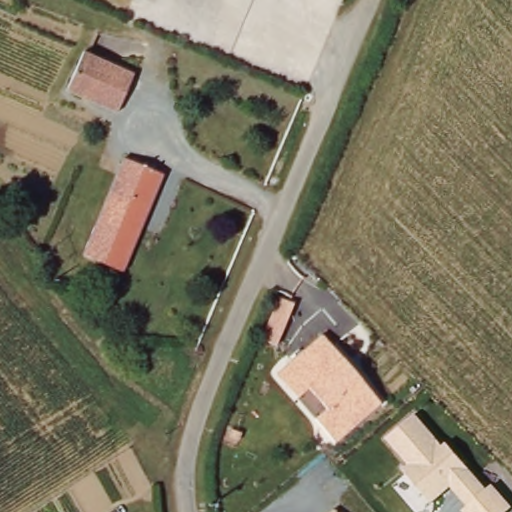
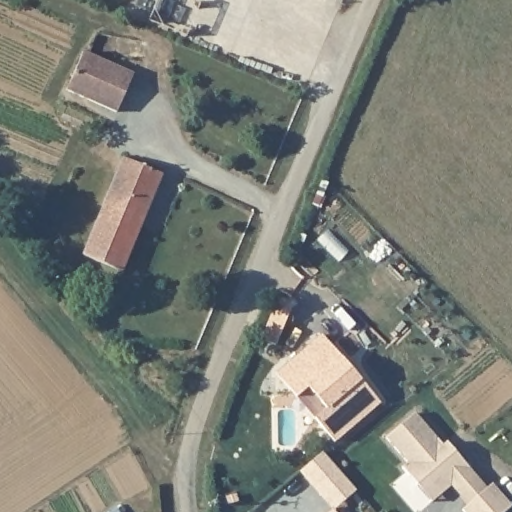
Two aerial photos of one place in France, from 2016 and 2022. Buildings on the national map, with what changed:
unchanged [(137,69),(121,108),(71,88),(87,48),(137,69)]
unchanged [(121,159),(156,175),(115,272),(80,256),(121,159)]
unchanged [(380,400),(329,443),(271,376),(320,332),(380,400)]
unchanged [(440,445),(445,441),(486,489),(492,484),(511,507),(506,512),(464,512),(462,510),(467,506),(450,485),(432,501),(402,466),(407,463),(385,437),(414,414),(440,445)]
new [(333,509),(298,472),(323,452),(356,490),(333,509)]
unchanged [(331,510),(332,512),(329,512),(331,510)]

